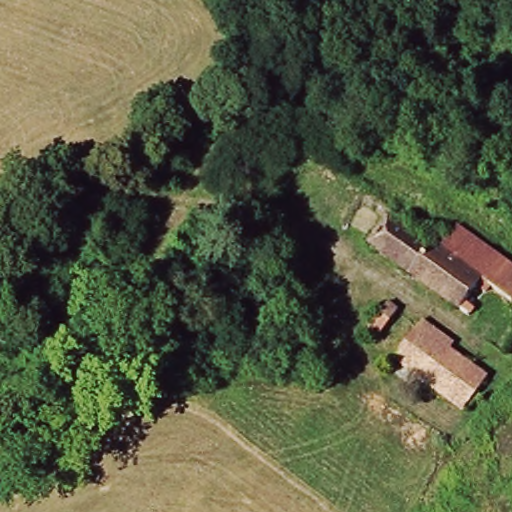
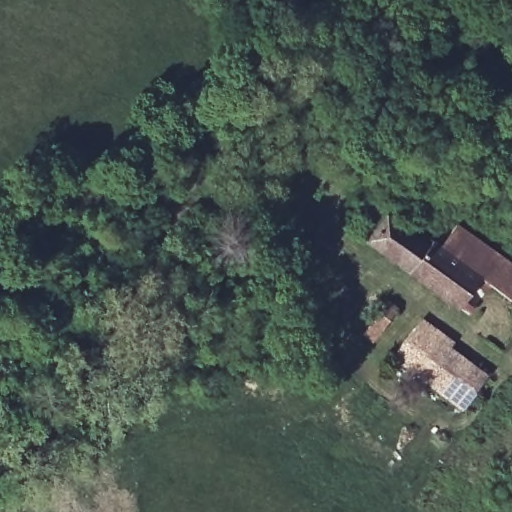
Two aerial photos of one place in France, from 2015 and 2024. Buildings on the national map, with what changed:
unchanged [(464,311),(337,219),(353,195),(394,225),(400,220),(407,223),(429,242),(453,258),(485,281),(464,311)]
unchanged [(485,281),(453,258),(468,237),(512,267),(512,300),(485,281)]
unchanged [(451,397),(457,391),(424,368),(419,374),(377,337),(399,311),(495,383),(476,415),(451,397)]

